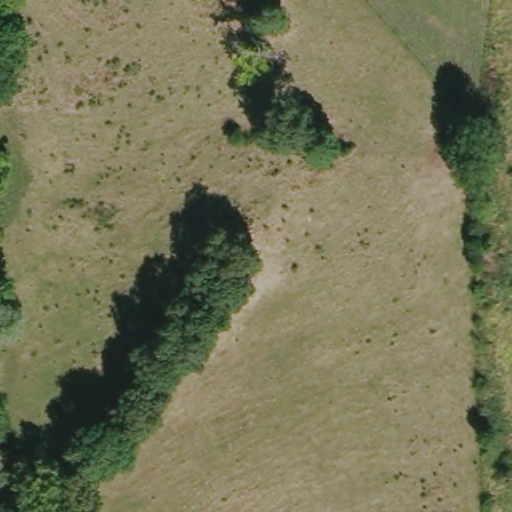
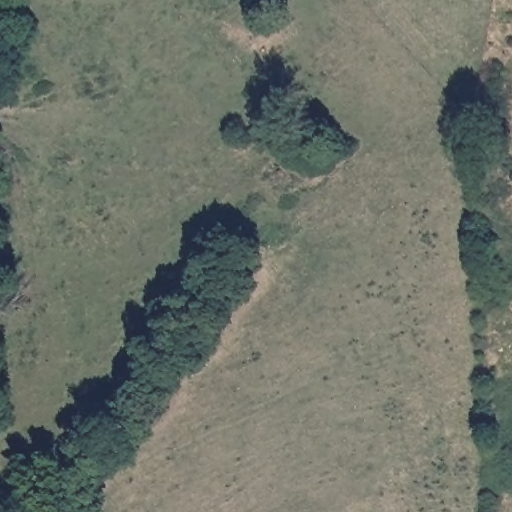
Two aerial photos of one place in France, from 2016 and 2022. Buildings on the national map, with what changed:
[]

